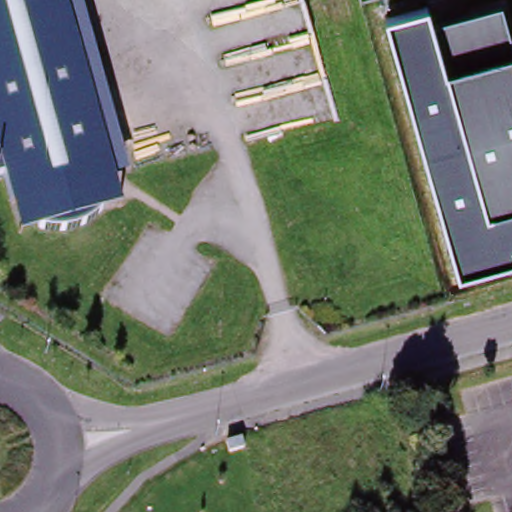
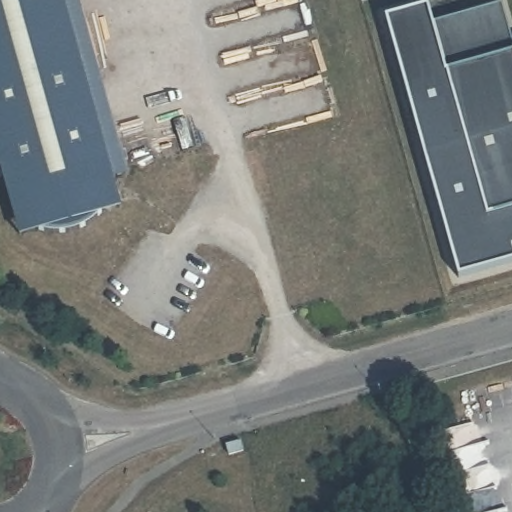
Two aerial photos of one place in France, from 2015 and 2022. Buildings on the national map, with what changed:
unchanged [(5,175),(0,177),(0,0),(63,0),(118,195),(120,207),(103,212),(95,220),(86,226),(76,230),(65,233),(55,233),(46,233),(39,230),(22,235),(18,223),(5,175)]
unchanged [(436,24),(489,216),(496,239),(512,235),(512,258),(459,272),(387,13),(428,4),(436,24)]
unchanged [(505,4),(512,29),(512,210),(489,216),(436,24),(505,4)]
unchanged [(512,235),(496,239),(489,216),(512,210),(512,235)]

